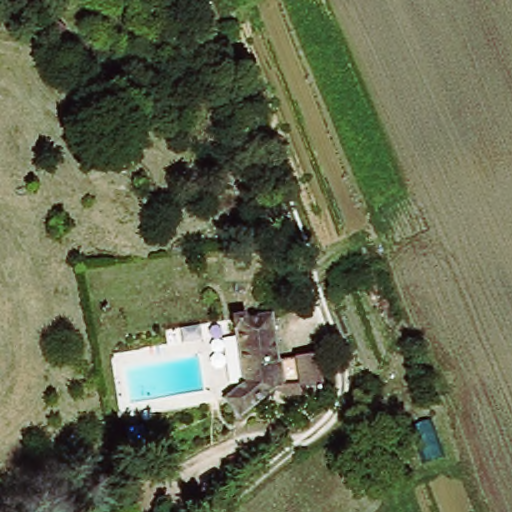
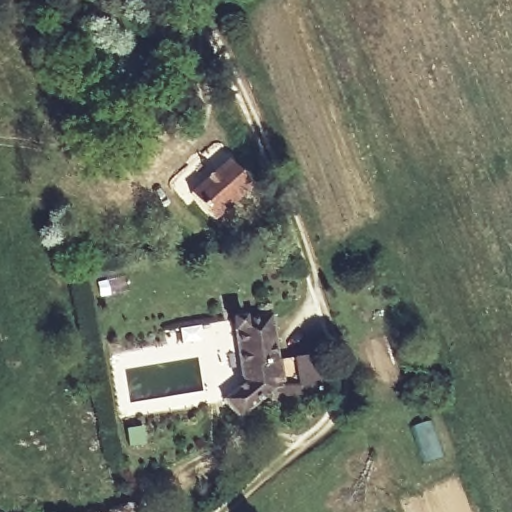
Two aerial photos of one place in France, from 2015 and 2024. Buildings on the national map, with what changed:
new [(229,162),(252,190),(215,222),(192,196),(229,162)]
unchanged [(322,391),(282,398),(280,388),(266,390),(268,398),(233,422),(218,405),(238,389),(227,322),(266,316),(273,360),(315,353),(322,391)]

